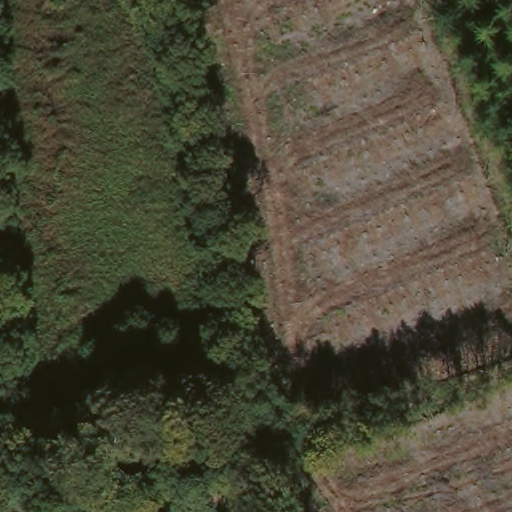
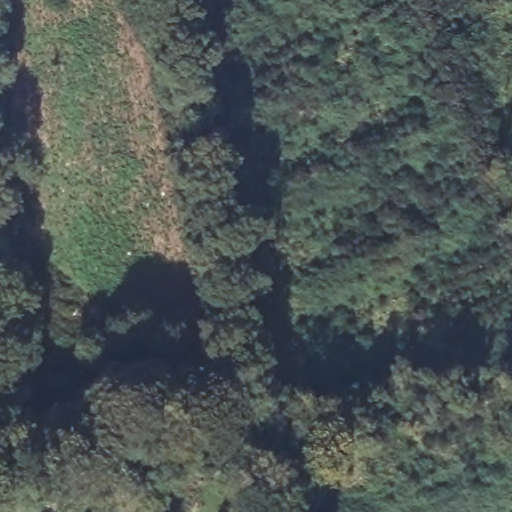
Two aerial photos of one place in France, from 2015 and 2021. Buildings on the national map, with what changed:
[]

